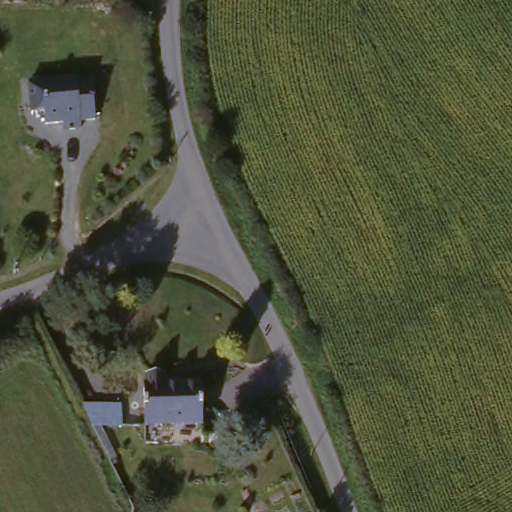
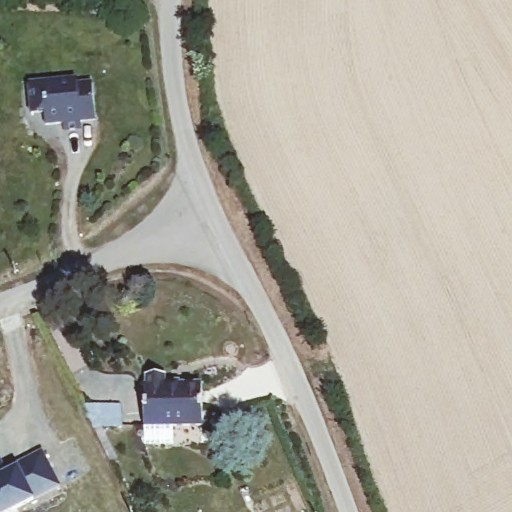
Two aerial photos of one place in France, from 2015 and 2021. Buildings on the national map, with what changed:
unchanged [(29,85),(77,79),(77,84),(92,81),(97,119),(82,120),(83,128),(65,130),(64,123),(47,125),(46,115),(33,116),(32,109),(29,85)]
unchanged [(139,425),(142,386),(148,386),(149,375),(171,376),(170,387),(206,390),(204,428),(139,425)]
new [(5,471),(17,465),(41,451),(61,486),(34,500),(10,512),(0,512),(0,461),(5,471)]

